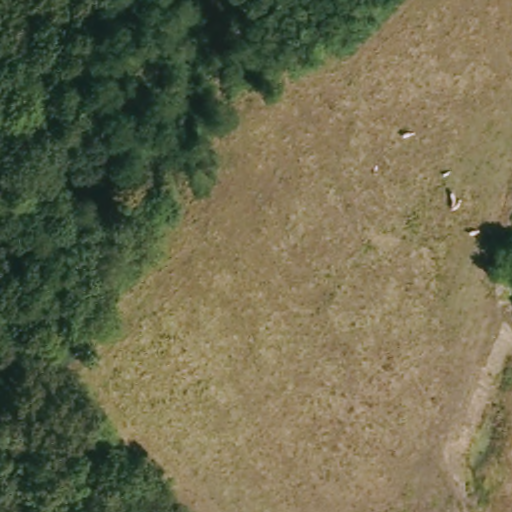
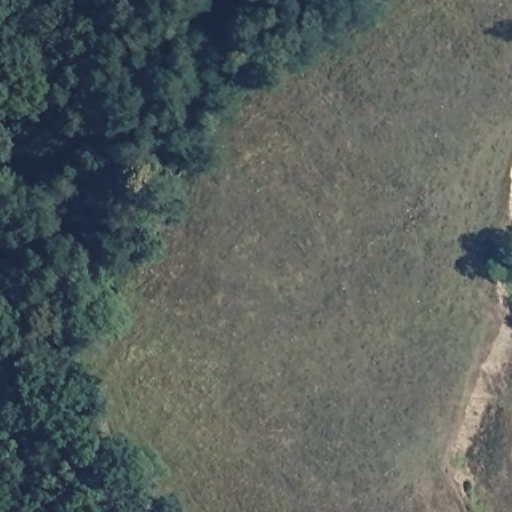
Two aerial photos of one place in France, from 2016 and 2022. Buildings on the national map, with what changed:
[]

